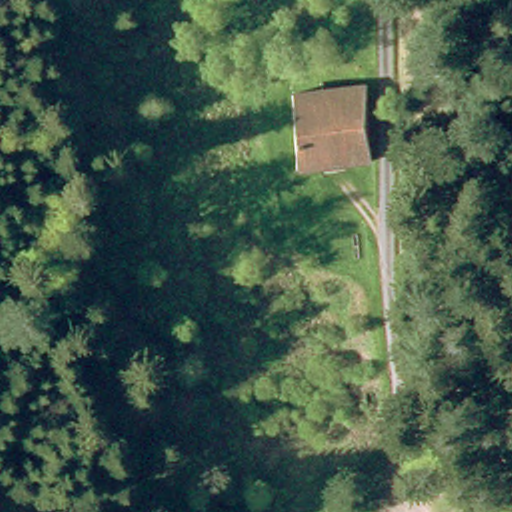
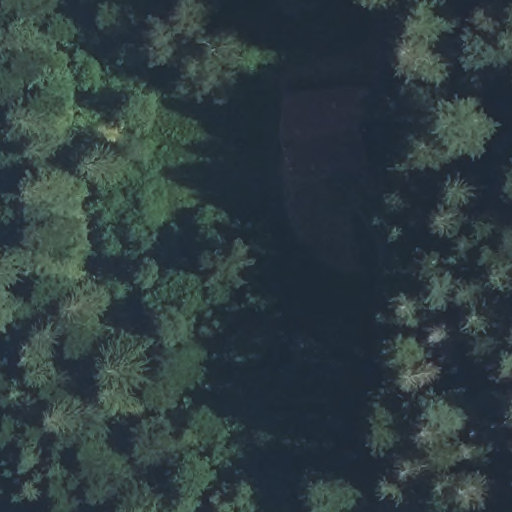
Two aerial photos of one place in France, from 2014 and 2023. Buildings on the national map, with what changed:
unchanged [(267,115),(294,116),(292,87),(365,88),(365,163),(302,166),(299,135),(274,136),(267,115)]

